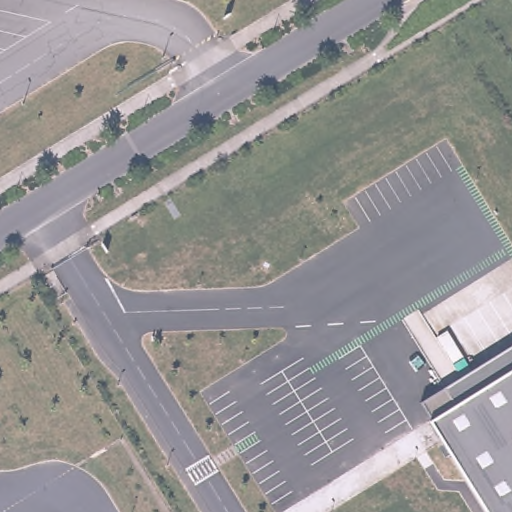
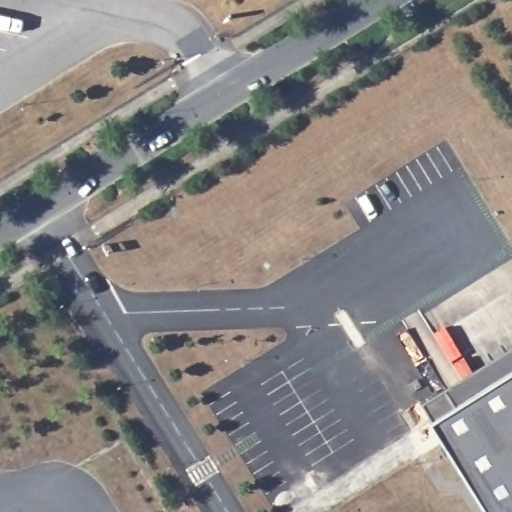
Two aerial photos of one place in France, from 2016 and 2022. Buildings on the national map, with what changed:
unchanged [(512,346),(512,371),(455,406),(445,388),(512,346)]
unchanged [(431,421),(420,403),(445,388),(455,406),(512,371),(512,512),(486,512),(430,422),(431,421)]

